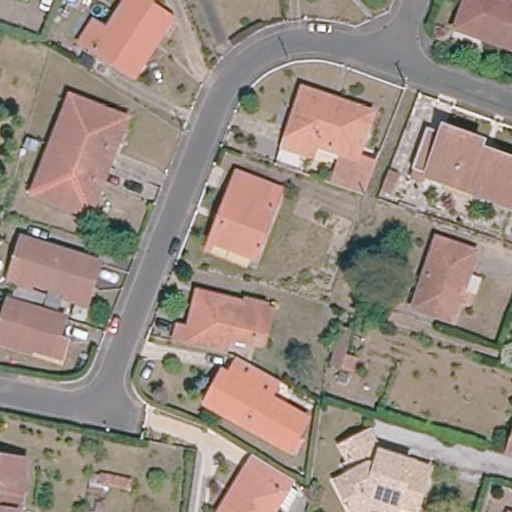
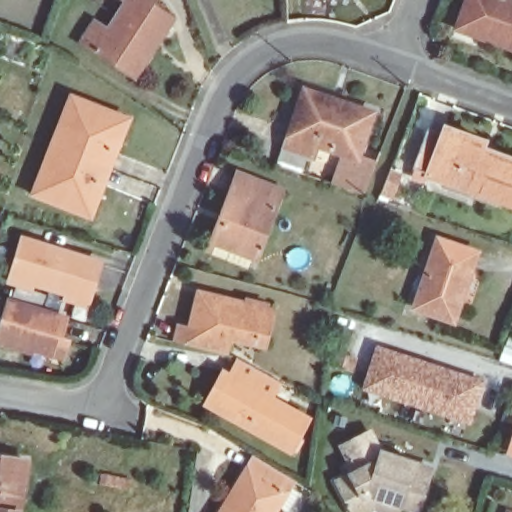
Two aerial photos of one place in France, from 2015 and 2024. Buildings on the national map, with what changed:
unchanged [(153,0),(151,2),(173,17),(156,42),(135,74),(80,41),(94,20),(108,27),(118,13),(125,0),(153,0)]
unchanged [(512,0),(512,42),(463,24),(471,0),(512,0)]
unchanged [(280,159),(287,142),(294,124),(307,87),(338,98),(371,110),(356,152),(376,160),(364,191),(333,180),(344,149),(319,140),(314,152),(309,150),(304,167),(280,159)]
unchanged [(96,166),(51,149),(70,100),(128,122),(109,170),(96,166)]
unchanged [(481,155),(495,160),(494,163),(512,170),(512,202),(476,187),(449,179),(447,184),(414,171),(429,129),(445,135),(447,130),(485,143),(481,155)]
unchanged [(51,149),(96,166),(109,170),(90,219),(34,197),(51,149)]
unchanged [(388,173),(398,177),(391,195),(381,191),(388,173)]
unchanged [(223,216),(239,175),(283,191),(255,260),(217,244),(213,242),(223,216)]
unchanged [(0,236),(0,231),(1,232),(0,236)]
unchanged [(88,300),(24,280),(18,278),(21,267),(28,242),(104,265),(98,290),(95,302),(88,300)]
unchanged [(442,246),(473,255),(479,257),(458,323),(419,311),(442,246)]
unchanged [(269,343),(263,342),(234,335),(229,355),(182,341),(188,322),(198,325),(205,293),(270,310),(278,312),(269,343)]
unchanged [(67,356),(56,353),(39,347),(38,352),(5,342),(16,304),(71,321),(66,342),(70,343),(67,356)]
unchanged [(354,371),(344,367),(334,364),(346,330),(354,332),(347,355),(358,359),(354,371)]
new [(364,387),(376,346),(482,381),(469,421),(364,387)]
unchanged [(301,455),(294,452),(293,455),(237,422),(211,407),(228,375),(235,380),(244,362),(283,385),(273,401),(305,419),(312,423),(303,438),(302,440),(309,443),(301,455)]
unchanged [(357,512),(350,512),(344,501),(332,478),(345,471),(340,462),(347,460),(338,442),(365,429),(376,450),(394,455),(407,460),(425,466),(412,509),(394,503),(392,512),(389,512),(371,505),(357,512)]
unchanged [(509,451),(512,442),(512,452),(509,451)]
unchanged [(18,512),(0,512),(0,458),(25,461),(18,512)]
unchanged [(290,492),(302,498),(293,512),(282,512),(279,510),(278,512),(224,512),(238,490),(256,461),(295,485),(290,492)]

